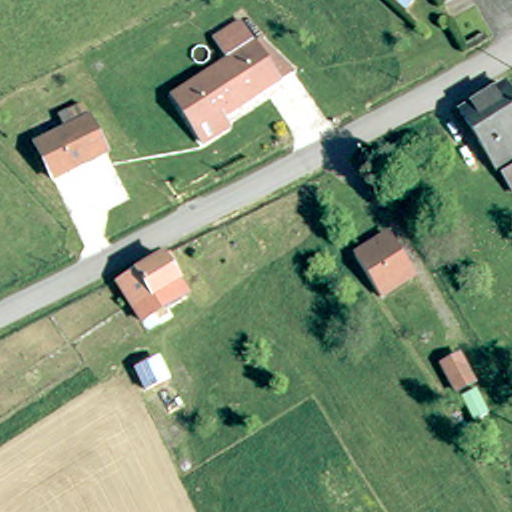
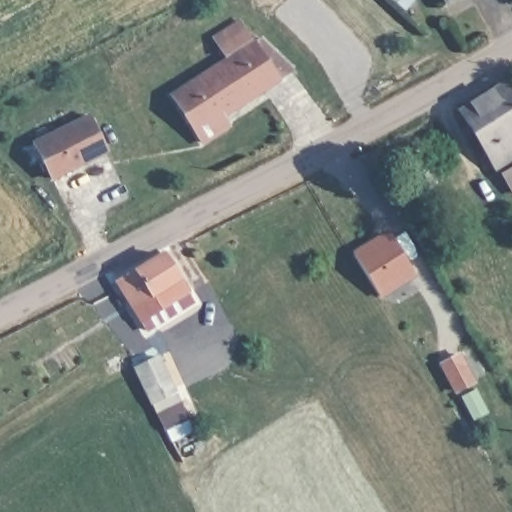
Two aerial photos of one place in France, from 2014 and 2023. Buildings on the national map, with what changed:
unchanged [(456,17),(446,0),(487,0),(456,17)]
unchanged [(208,141),(200,130),(177,95),(200,80),(233,58),(219,37),(245,20),(259,41),(265,37),(298,69),(284,79),(233,112),(225,117),(231,126),(208,141)]
unchanged [(500,81),(512,100),(512,157),(495,168),(457,107),(500,81)]
unchanged [(93,116),(112,152),(58,180),(40,144),(93,116)]
unchanged [(510,190),(500,171),(512,164),(512,188),(510,190)]
unchanged [(381,298),(360,262),(356,256),(389,236),(415,278),(381,298)]
unchanged [(161,312),(162,315),(147,322),(124,284),(170,257),(192,293),(161,312)]
new [(160,355),(191,417),(164,428),(135,369),(160,355)]
unchanged [(461,357),(475,385),(457,394),(443,367),(461,357)]
unchanged [(477,392),(490,416),(476,423),(463,399),(477,392)]

